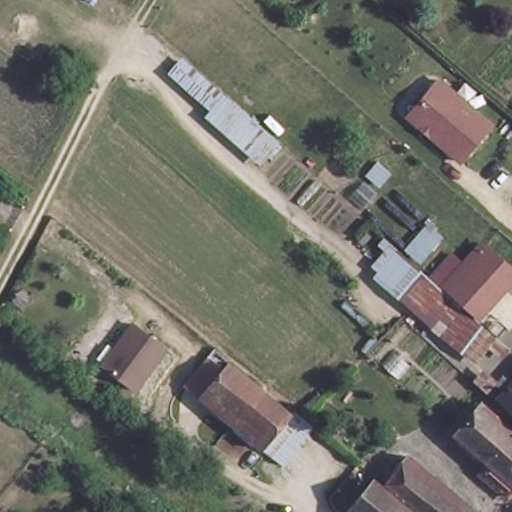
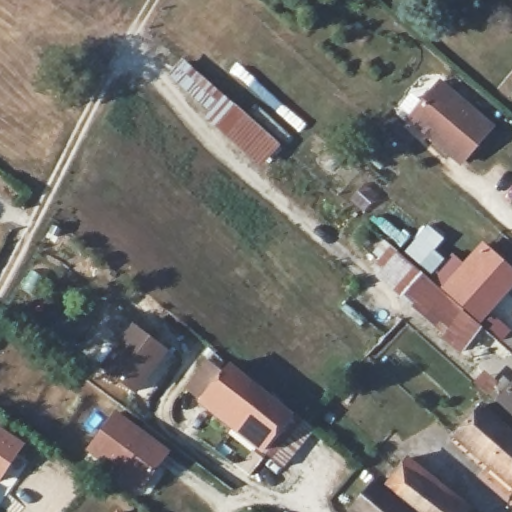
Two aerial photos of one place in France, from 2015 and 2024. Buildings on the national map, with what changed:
unchanged [(259,166),(208,116),(212,112),(173,75),(188,57),(278,145),(259,166)]
unchanged [(441,80),(495,125),(463,166),(406,119),(441,80)]
unchanged [(510,348),(499,360),(486,352),(470,368),(368,272),(392,243),(401,255),(428,221),(443,237),(420,268),(442,287),(482,237),(512,269),(512,289),(482,324),(510,348)]
unchanged [(170,352),(139,392),(107,365),(135,325),(170,352)]
unchanged [(197,400),(225,365),(288,416),(259,452),(197,400)]
unchanged [(512,390),(512,411),(501,402),(512,390)]
unchanged [(479,406),(512,434),(512,487),(452,436),(479,406)]
new [(115,410),(170,451),(139,491),(85,451),(115,410)]
unchanged [(288,416),(297,423),(298,422),(310,433),(280,468),(261,453),(259,452),(288,416)]
new [(25,442),(0,480),(0,425),(25,442)]
unchanged [(401,468),(436,496),(431,502),(423,512),(400,512),(378,496),(401,468)]
unchanged [(391,512),(351,512),(367,493),(391,512)]
unchanged [(423,512),(431,502),(445,512),(423,512)]
new [(120,512),(116,512),(117,510),(120,512)]

